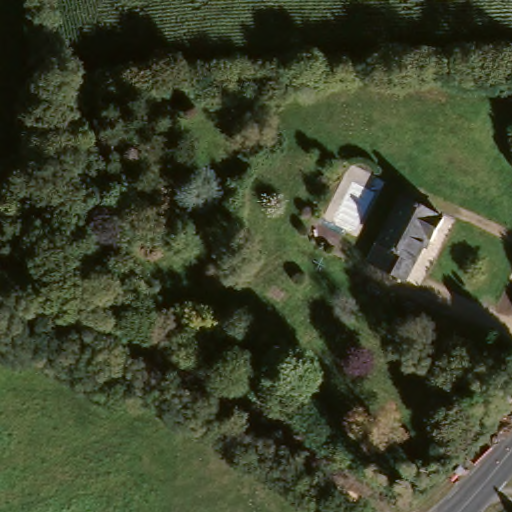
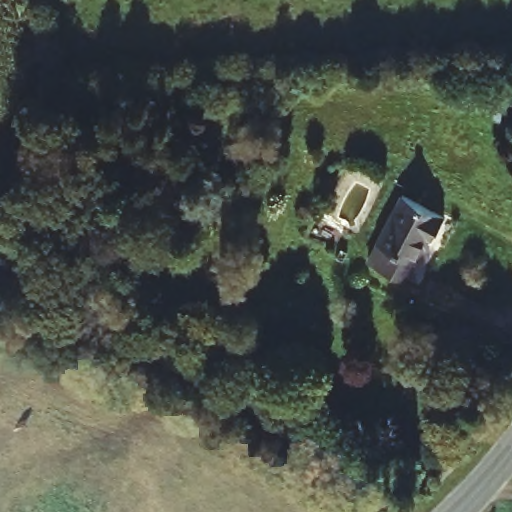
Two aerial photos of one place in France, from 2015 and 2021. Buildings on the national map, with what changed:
unchanged [(369,265),(400,196),(447,221),(436,244),(429,241),(407,284),(369,265)]

